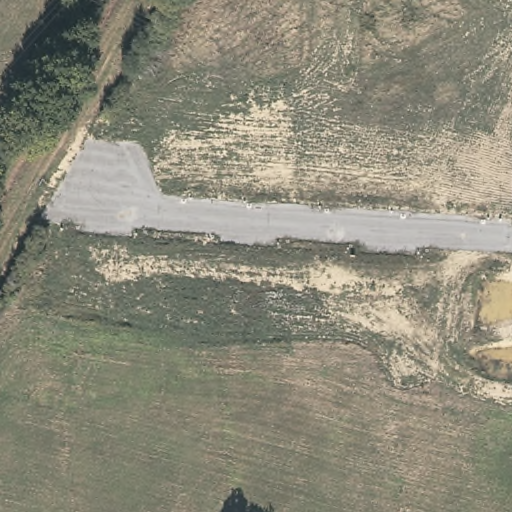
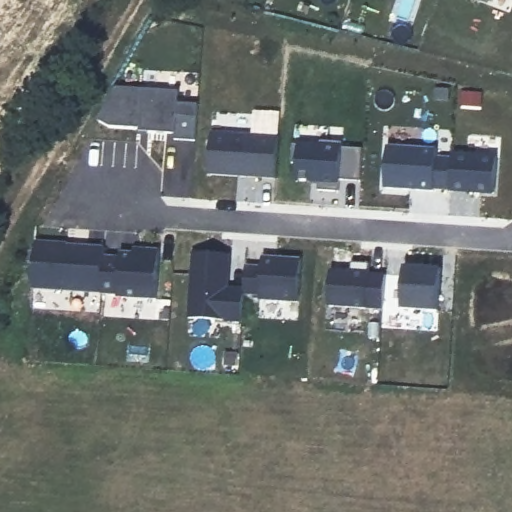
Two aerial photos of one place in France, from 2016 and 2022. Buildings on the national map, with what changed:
new [(116,86),(180,91),(179,103),(199,104),(197,140),(175,139),(175,133),(140,131),(140,128),(110,126),(98,120),(116,86)]
new [(212,132),(281,135),(278,178),(209,174),(212,132)]
new [(321,145),(320,140),(343,141),(343,146),(365,148),(363,181),(341,180),(340,191),(320,189),(320,182),(296,181),(297,164),(293,164),(294,144),(321,145)]
new [(388,145),(438,148),(437,156),(456,156),(454,189),(435,188),(435,192),(385,189),(388,145)]
unchanged [(102,293),(34,291),(37,242),(67,243),(69,246),(104,247),(102,293)]
new [(104,254),(120,255),(120,252),(134,253),(135,248),(161,249),(158,299),(118,297),(118,294),(102,293),(104,254)]
new [(190,251),(226,253),(224,287),(241,289),(241,293),(239,321),(186,317),(190,251)]
new [(241,289),(243,265),(259,266),(260,256),(298,258),(295,302),(257,299),(257,295),(241,293),(241,289)]
unchanged [(329,308),(332,271),(352,272),(353,264),(370,265),(370,272),(386,274),(384,312),(329,308)]
new [(404,268),(441,269),(440,311),(402,310),(404,268)]

